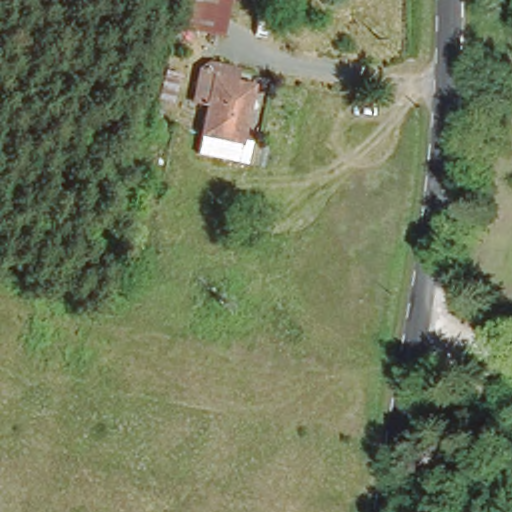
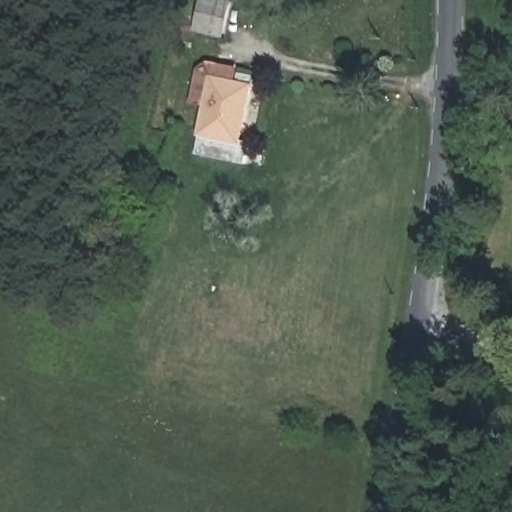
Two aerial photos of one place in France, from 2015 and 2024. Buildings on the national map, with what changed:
unchanged [(179,30),(185,0),(232,0),(221,38),(179,30)]
unchanged [(238,138),(252,141),(248,163),(200,153),(210,105),(195,102),(198,75),(205,68),(211,66),(218,65),(230,67),(227,80),(249,84),(238,138)]

